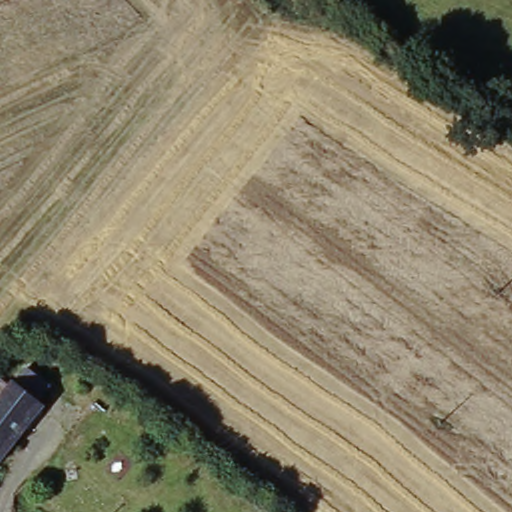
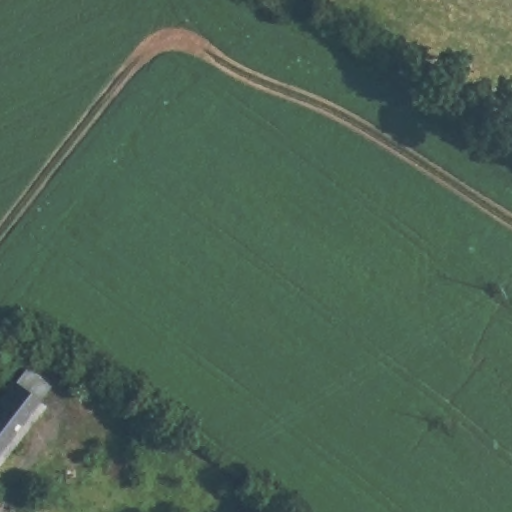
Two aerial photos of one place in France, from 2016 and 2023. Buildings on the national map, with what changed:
unchanged [(29,365),(53,385),(41,397),(47,402),(0,459),(0,398),(17,377),(18,378),(29,365)]

